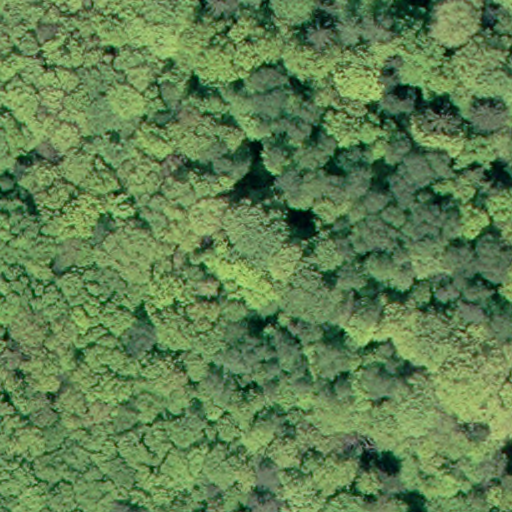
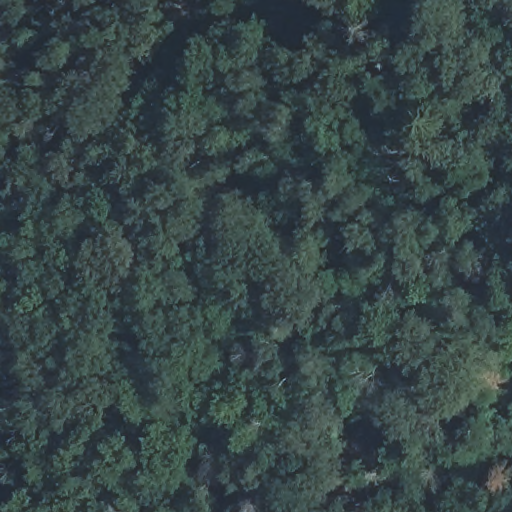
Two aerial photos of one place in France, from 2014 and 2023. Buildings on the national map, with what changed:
unchanged [(174,97),(171,76),(194,71),(198,92),(174,97)]

